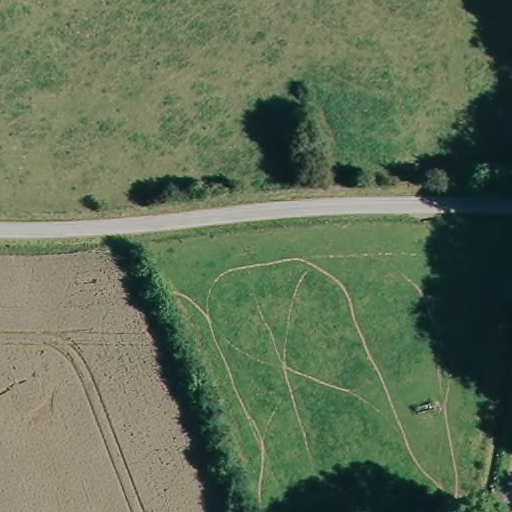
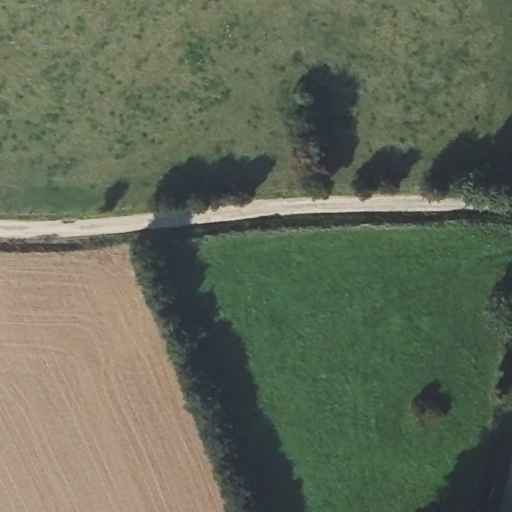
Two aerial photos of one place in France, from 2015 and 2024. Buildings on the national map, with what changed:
[]

